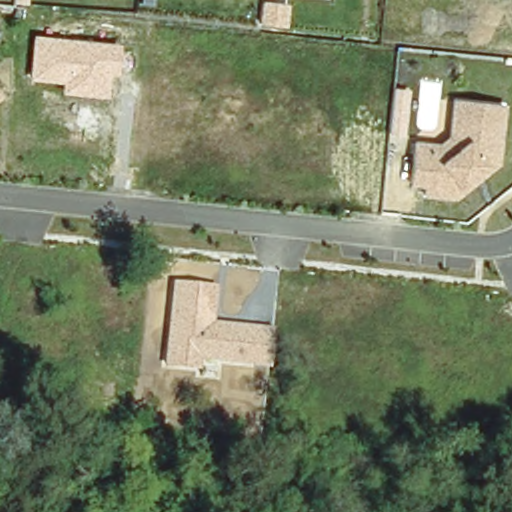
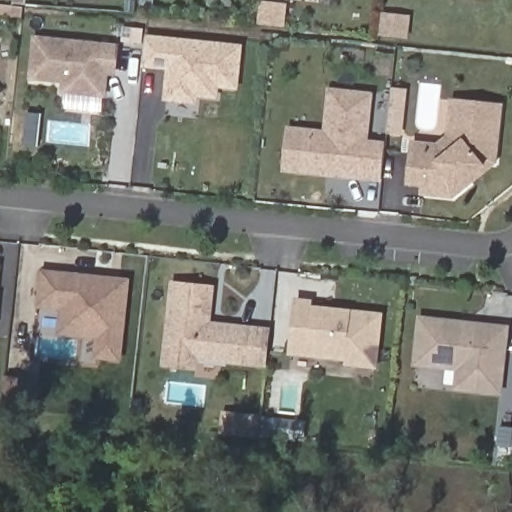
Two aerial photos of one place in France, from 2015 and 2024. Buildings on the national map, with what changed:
new [(283,27),(272,26),(257,24),(260,2),(274,3),(285,5),(283,27)]
new [(239,90),(220,88),(218,101),(197,98),(196,105),(165,102),(167,71),(143,68),(146,35),(243,45),(239,90)]
unchanged [(117,76),(110,76),(107,99),(61,94),(61,85),(27,81),(32,36),(121,44),(117,76)]
new [(392,90),(405,91),(403,111),(401,133),(388,131),(390,110),(392,90)]
new [(287,170),(291,131),(326,135),(331,93),(370,97),(365,143),(385,145),(380,180),(287,170)]
unchanged [(1,95),(0,97),(0,94),(1,95)]
unchanged [(495,167),(453,199),(418,195),(419,187),(405,185),(412,140),(437,141),(446,133),(450,99),(502,105),(495,167)]
new [(60,303),(36,300),(40,268),(109,275),(125,276),(124,286),(116,354),(94,352),(95,333),(57,328),(59,314),(60,303)]
unchanged [(207,325),(257,331),(255,362),(200,358),(197,368),(165,365),(174,284),(211,287),(207,325)]
new [(346,365),(346,361),(288,354),(295,297),(314,299),(314,305),(385,313),(379,368),(346,365)]
new [(498,391),(455,387),(456,368),(443,366),(413,364),(415,347),(418,319),(505,328),(498,391)]
new [(25,410),(15,409),(0,408),(0,387),(1,377),(19,379),(29,380),(25,410)]
new [(256,437),(237,435),(217,433),(219,414),(239,416),(258,418),(256,437)]

